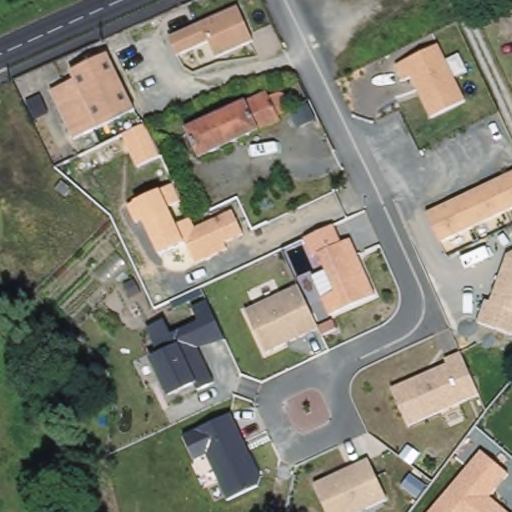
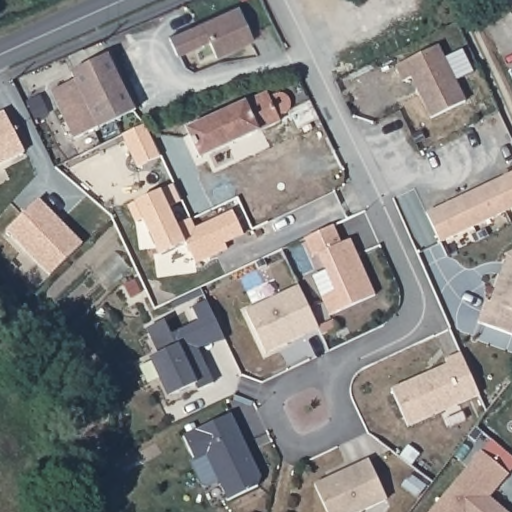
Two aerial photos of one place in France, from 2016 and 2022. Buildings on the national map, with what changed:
unchanged [(214,59),(207,44),(176,57),(167,37),(236,8),(253,42),(214,59)]
unchanged [(468,99),(431,114),(413,76),(402,80),(399,64),(442,45),(468,99)]
unchanged [(101,58),(128,112),(92,129),(66,75),(101,58)]
unchanged [(66,75),(92,129),(70,140),(44,86),(66,75)]
unchanged [(263,98),(271,95),(276,94),(280,95),(284,99),(286,102),(286,107),(284,111),(273,118),(274,123),(196,158),(183,130),(261,94),(263,98)]
new [(4,112),(24,152),(0,165),(0,115),(4,112)]
unchanged [(141,123),(142,125),(147,135),(144,137),(138,140),(133,129),(132,128),(141,123)]
unchanged [(425,214),(512,174),(512,210),(440,244),(425,214)]
unchanged [(182,236),(186,245),(161,257),(143,220),(135,223),(127,206),(134,204),(161,191),(173,185),(180,201),(168,207),(177,226),(191,219),(195,230),(182,236)]
new [(36,202),(80,246),(48,278),(4,234),(36,202)]
unchanged [(232,212),(242,236),(224,244),(226,249),(195,264),(182,236),(232,212)]
unchanged [(328,316),(311,277),(323,272),(316,256),(312,258),(304,240),(335,225),(343,242),(352,239),(377,295),(328,316)]
unchanged [(476,324),(484,301),(488,301),(505,253),(512,250),(512,334),(511,336),(476,324)]
unchanged [(318,330),(264,355),(243,310),(297,286),(318,330)]
unchanged [(200,350),(215,386),(197,393),(192,387),(165,399),(145,358),(155,354),(144,329),(165,319),(170,331),(196,320),(190,307),(206,299),(225,340),(200,350)]
unchanged [(407,427),(388,389),(445,364),(444,359),(461,352),(479,396),(407,427)]
unchanged [(184,437),(232,415),(261,475),(258,486),(227,500),(207,456),(195,460),(184,437)]
unchanged [(506,512),(429,512),(479,452),(508,475),(490,499),(506,512)]
unchanged [(365,512),(325,512),(311,485),(368,459),(387,501),(365,512)]

